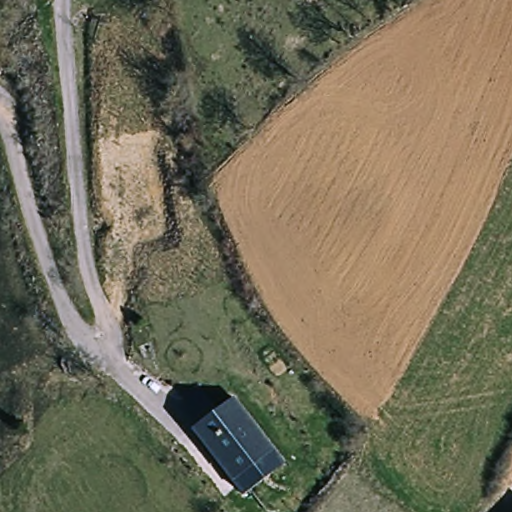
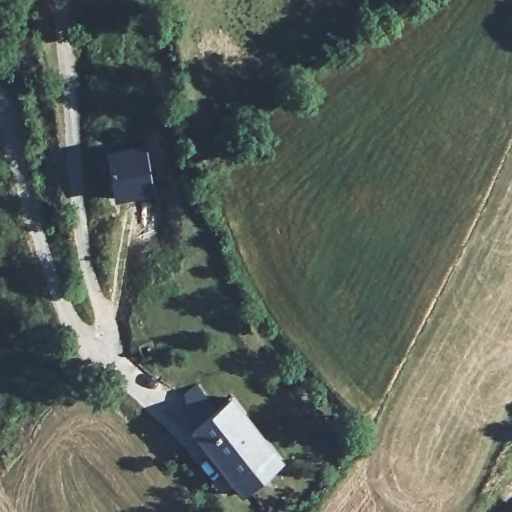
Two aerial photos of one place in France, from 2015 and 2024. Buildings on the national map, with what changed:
new [(106,151),(145,145),(153,195),(115,202),(106,151)]
unchanged [(186,433),(182,400),(195,391),(212,416),(232,402),(271,455),(227,486),(186,433)]
unchanged [(282,470),(239,502),(227,486),(271,455),(282,470)]

